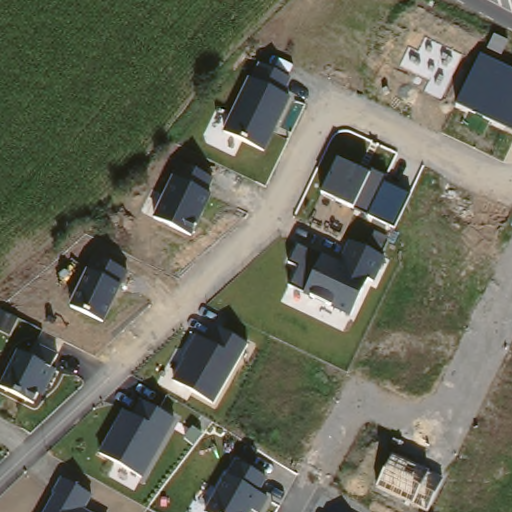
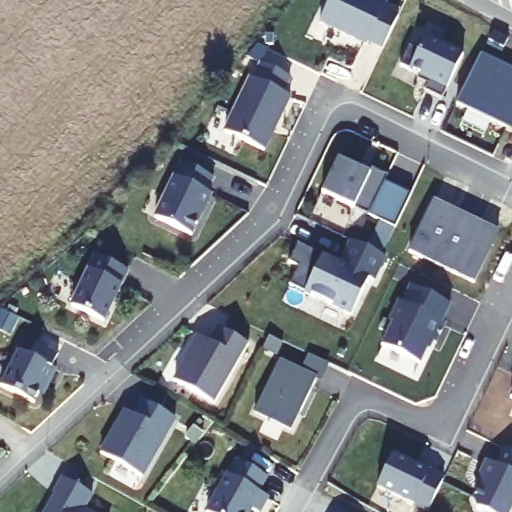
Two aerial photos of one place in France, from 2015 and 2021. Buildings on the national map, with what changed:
new [(374,0),(387,6),(385,10),(399,17),(384,49),(370,42),(368,46),(321,23),(332,0),(374,0)]
new [(426,92),(431,82),(409,72),(399,66),(414,31),(427,37),(464,55),(448,88),(442,99),(426,92)]
unchanged [(480,54),(512,70),(512,131),(456,104),(480,54)]
unchanged [(248,77),(254,80),(262,63),(291,77),(284,92),(292,97),(268,152),(224,131),(248,77)]
unchanged [(339,159),(371,174),(374,170),(387,175),(384,182),(412,194),(396,226),(354,207),(323,192),(339,159)]
unchanged [(181,162),(213,178),(207,192),(210,195),(192,234),(154,218),(181,162)]
new [(435,202),(500,234),(475,284),(410,253),(435,202)]
unchanged [(305,294),(289,286),(299,267),(290,262),(298,244),(340,263),(352,241),(364,247),(374,231),(389,238),(380,256),(381,256),(385,259),(374,284),(368,282),(351,317),(305,294)]
unchanged [(89,267),(95,270),(102,257),(127,270),(121,286),(104,321),(70,307),(89,267)]
new [(393,323),(390,322),(399,302),(403,304),(411,287),(451,306),(442,323),(446,325),(437,344),(431,341),(420,365),(382,347),(393,323)]
unchanged [(174,380),(197,336),(205,340),(214,325),(248,343),(214,403),(174,380)]
unchanged [(0,384),(17,351),(35,359),(40,347),(58,357),(51,368),(56,372),(44,397),(39,395),(34,402),(0,385),(0,384)]
new [(301,372),(309,355),(329,365),(321,382),(316,380),(292,431),(255,413),(279,362),(301,372)]
unchanged [(512,396),(512,398),(511,398),(512,396)]
unchanged [(99,452),(123,409),(133,414),(142,399),(175,421),(143,477),(99,452)]
unchanged [(483,481),(478,479),(487,461),(497,466),(505,448),(512,451),(512,507),(510,512),(483,512),(477,509),(474,500),(483,481)]
unchanged [(391,455),(444,481),(428,512),(423,512),(413,506),(376,488),(391,455)]
unchanged [(237,460),(269,477),(261,493),(269,497),(262,512),(254,512),(250,510),(249,512),(207,512),(237,460)]
unchanged [(64,477),(93,493),(84,510),(88,512),(44,512),(64,477)]

